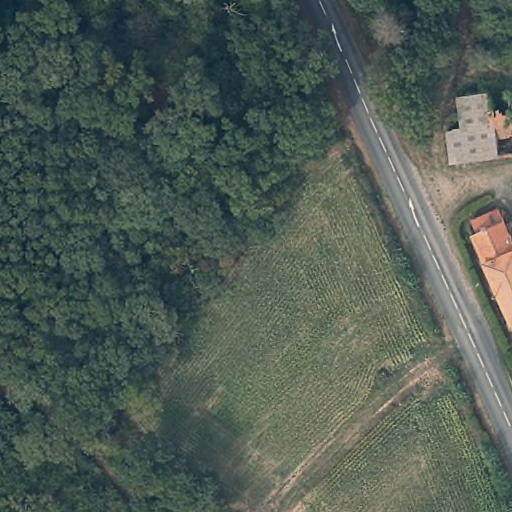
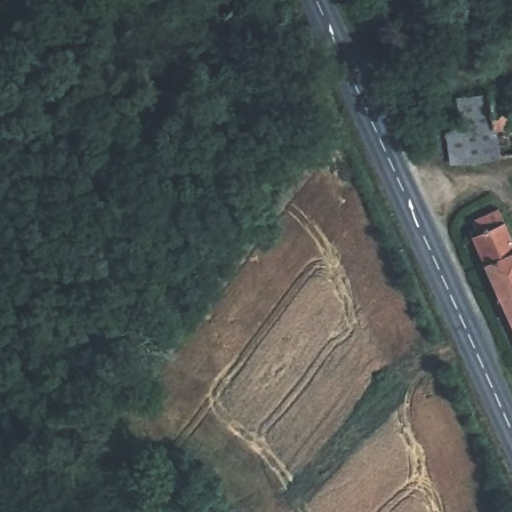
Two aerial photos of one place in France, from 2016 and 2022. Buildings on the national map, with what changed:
unchanged [(499,160),(452,164),(448,134),(462,131),(457,101),(490,96),(490,92),(499,160)]
unchanged [(512,235),(512,320),(475,238),(480,236),(474,222),(501,210),(512,235)]

